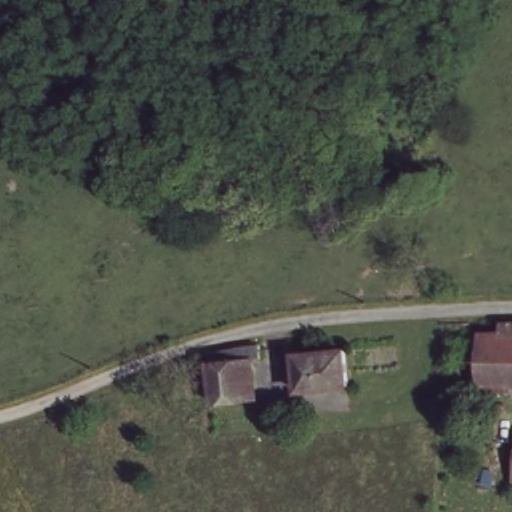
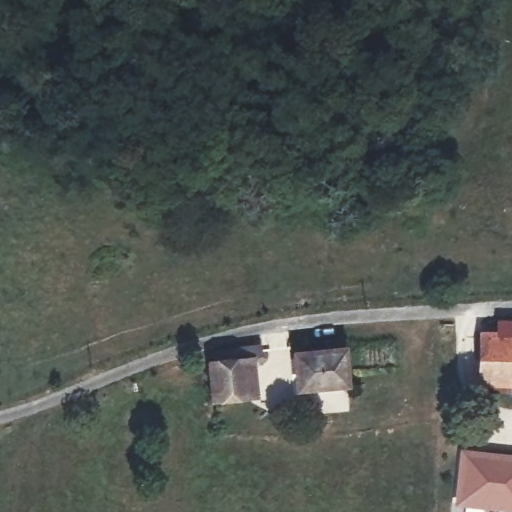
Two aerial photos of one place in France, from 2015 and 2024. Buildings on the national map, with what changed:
unchanged [(500,341),(500,322),(512,323),(512,364),(500,364),(500,341)]
unchanged [(477,342),(500,341),(500,364),(512,364),(512,392),(478,393),(477,342)]
unchanged [(346,386),(296,389),(296,353),(344,350),(346,386)]
unchanged [(247,400),(213,401),(212,359),(247,357),(247,400)]
new [(512,454),(512,512),(479,512),(453,510),(459,447),(512,454)]

